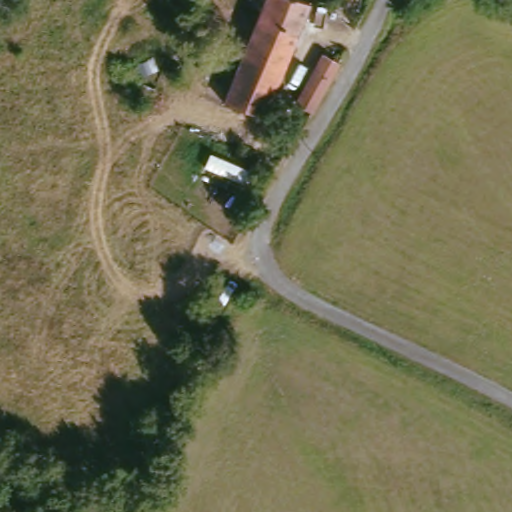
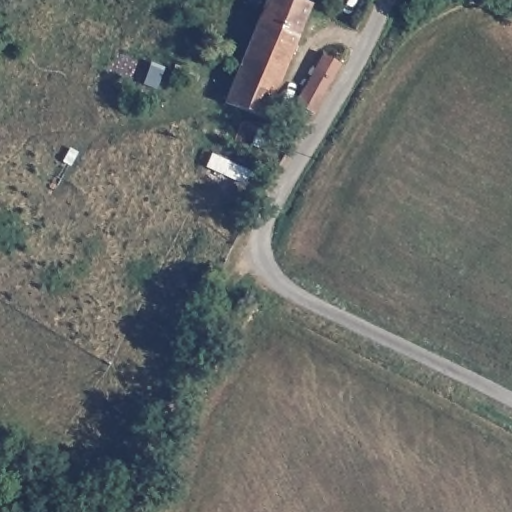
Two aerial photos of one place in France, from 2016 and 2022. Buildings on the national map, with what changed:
unchanged [(312,0),(275,119),(235,106),(265,0),(312,0)]
unchanged [(316,103),(302,95),(308,82),(304,79),(318,46),(340,54),(316,103)]

